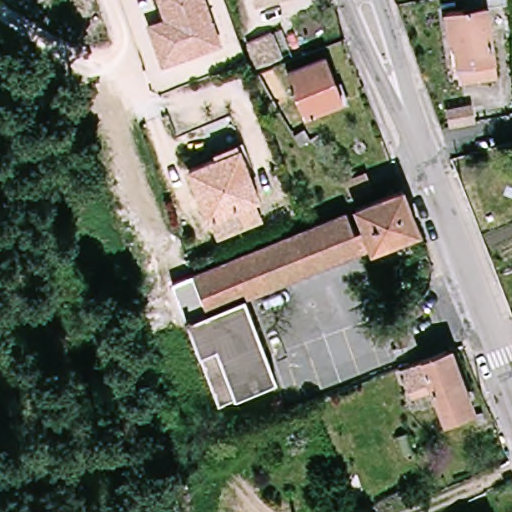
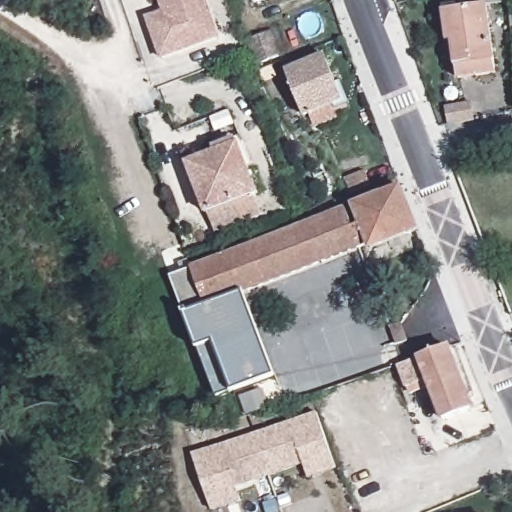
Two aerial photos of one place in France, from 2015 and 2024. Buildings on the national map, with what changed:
unchanged [(221,40),(161,63),(143,17),(162,11),(158,0),(207,0),(221,40)]
unchanged [(256,0),(262,0),(256,1),(256,0)]
unchanged [(499,73),(461,79),(456,40),(448,40),(445,9),(490,0),(493,0),(499,73)]
unchanged [(282,53),(266,60),(258,35),(274,30),(282,53)]
unchanged [(311,110),(296,66),(331,54),(346,98),(311,110)]
unchanged [(475,120),(448,126),(444,107),(471,102),(475,120)]
unchanged [(210,210),(192,158),(236,142),(255,194),(210,210)]
unchanged [(371,183),(349,194),(344,178),(365,170),(371,183)]
unchanged [(404,188),(419,232),(251,291),(276,371),(216,391),(188,303),(204,297),(195,261),(404,188)]
unchanged [(261,216),(217,232),(210,210),(255,194),(261,216)]
unchanged [(409,339),(396,343),(391,325),(404,321),(409,339)]
unchanged [(417,406),(405,368),(451,355),(469,414),(439,423),(432,401),(417,406)]
new [(238,489),(243,502),(215,512),(213,512),(193,455),(316,412),(338,468),(309,479),(304,464),(238,489)]

